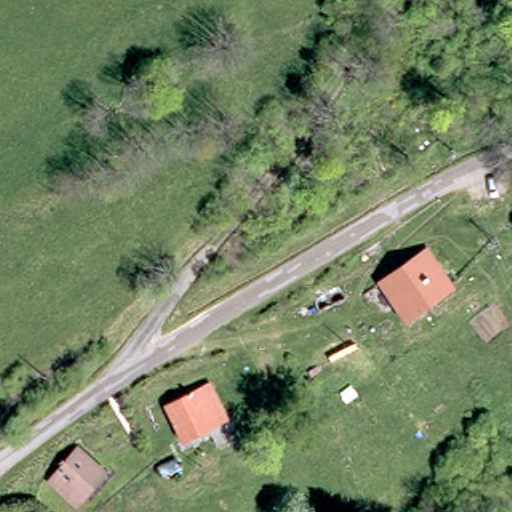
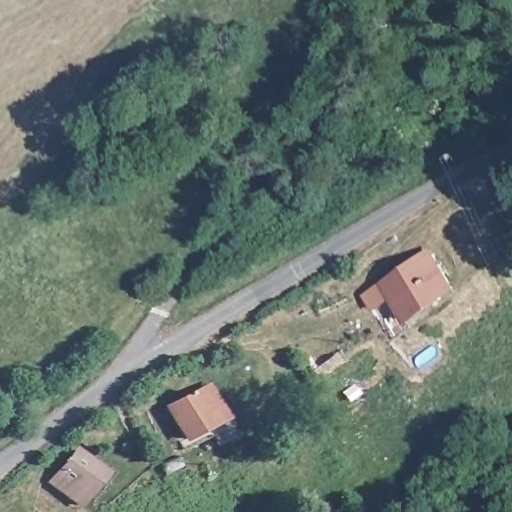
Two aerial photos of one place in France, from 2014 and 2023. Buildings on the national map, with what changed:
unchanged [(444,287),(400,317),(375,279),(419,249),(444,287)]
unchanged [(345,301),(317,315),(310,300),(338,286),(345,301)]
unchanged [(202,384),(219,413),(176,437),(160,408),(202,384)]
unchanged [(60,479),(50,468),(75,449),(98,478),(63,503),(51,486),(60,479)]

